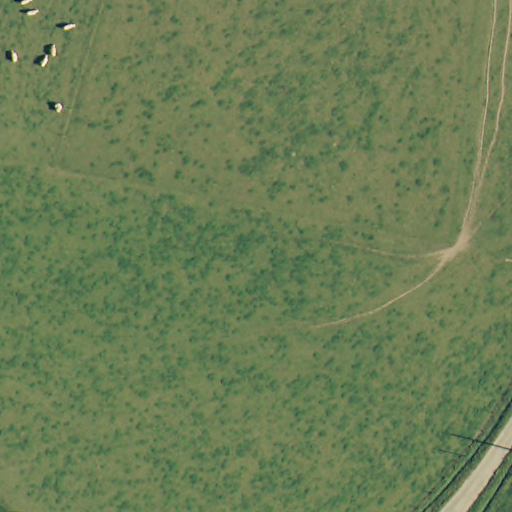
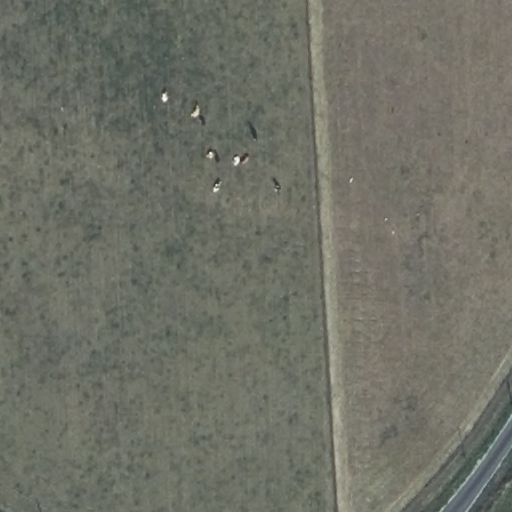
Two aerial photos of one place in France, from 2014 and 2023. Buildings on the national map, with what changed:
[]

